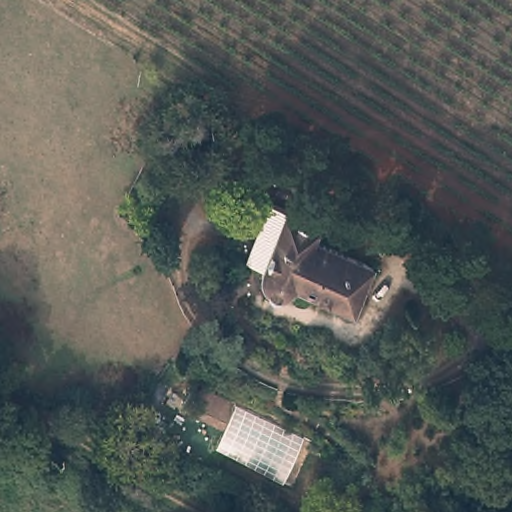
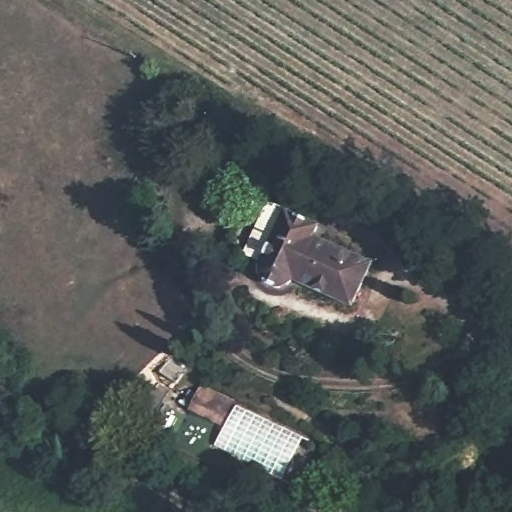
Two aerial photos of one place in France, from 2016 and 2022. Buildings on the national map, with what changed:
unchanged [(296,281),(287,292),(276,292),(268,291),(262,281),(262,269),(285,210),(320,227),(315,236),(372,261),(352,308),(296,281)]
unchanged [(186,408),(200,387),(231,402),(222,422),(186,408)]

